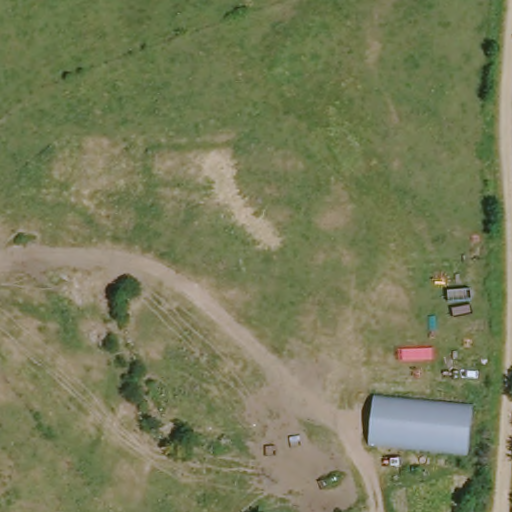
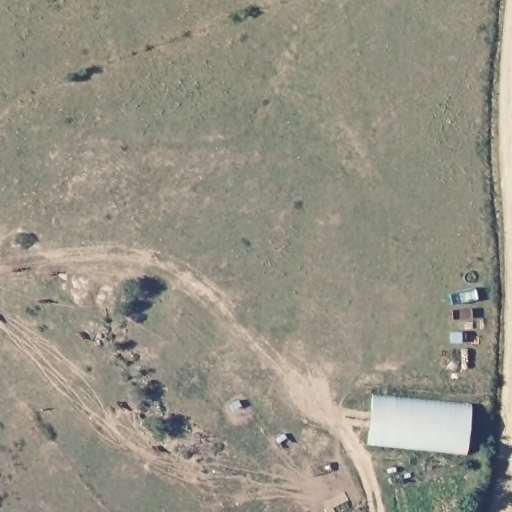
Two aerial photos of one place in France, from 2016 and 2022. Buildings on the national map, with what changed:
unchanged [(471,406),(468,451),(367,442),(373,396),(471,406)]

